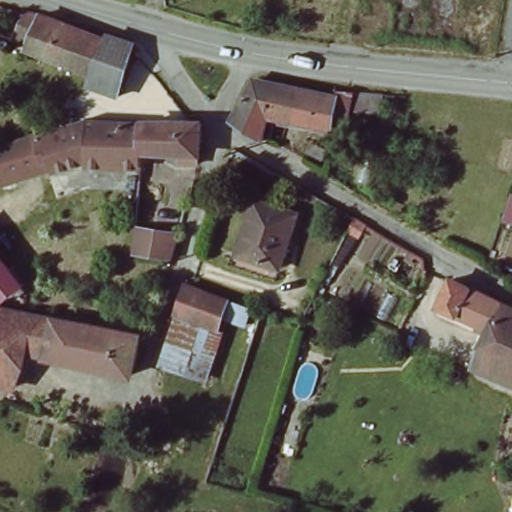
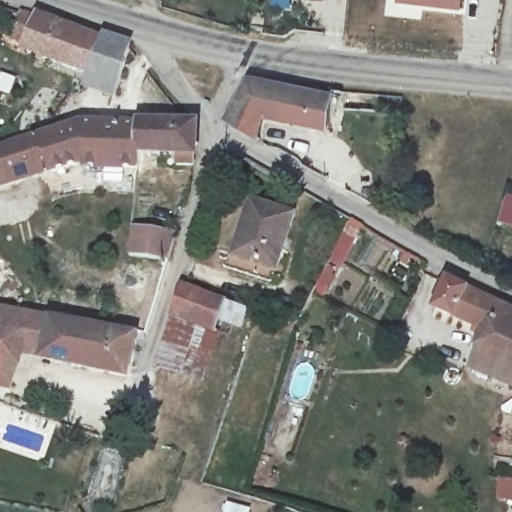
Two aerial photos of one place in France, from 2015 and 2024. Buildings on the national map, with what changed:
new [(326,1),(314,0),(326,0),(326,1)]
new [(399,0),(463,0),(462,11),(398,5),(399,0)]
unchanged [(27,48),(28,40),(11,36),(17,10),(33,11),(129,39),(121,71),(109,96),(82,84),(89,64),(27,48)]
unchanged [(228,116),(254,75),(332,95),(326,124),(271,112),(260,135),(228,116)]
unchanged [(25,132),(40,127),(45,127),(60,125),(88,121),(106,119),(113,117),(114,117),(153,121),(155,121),(151,150),(150,164),(149,165),(94,162),(94,159),(63,168),(59,155),(53,156),(55,163),(20,174),(6,177),(0,157),(0,139),(2,139),(25,132)]
unchanged [(155,121),(206,126),(209,130),(204,159),(202,168),(185,165),(186,155),(151,150),(155,121)]
unchanged [(512,206),(512,233),(505,231),(511,211),(512,206)]
unchanged [(248,209),(263,214),(291,224),(275,273),(234,260),(247,213),(248,209)]
unchanged [(181,241),(179,250),(175,266),(133,258),(136,230),(181,241)]
unchanged [(21,285),(0,301),(0,259),(21,285)]
unchanged [(494,338),(444,312),(457,281),(510,305),(512,306),(512,387),(478,370),(494,338)]
unchanged [(185,288),(255,308),(250,324),(226,316),(223,328),(176,316),(185,288)]
unchanged [(148,341),(140,378),(59,360),(60,357),(29,351),(18,387),(0,383),(0,307),(148,341)]
unchanged [(207,378),(160,370),(167,347),(176,316),(223,328),(207,378)]

